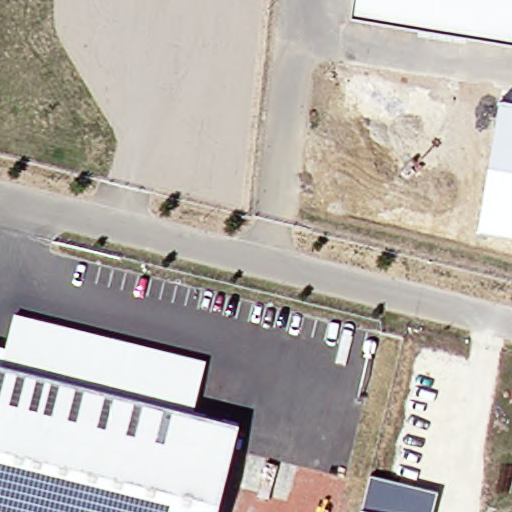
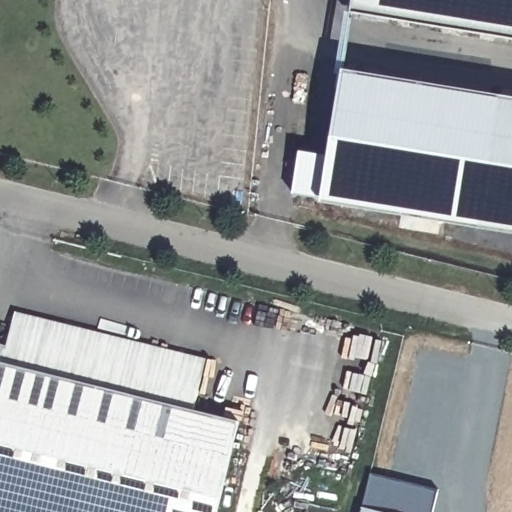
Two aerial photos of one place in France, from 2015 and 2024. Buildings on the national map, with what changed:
unchanged [(355,0),(512,0),(512,30),(354,4),(355,0)]
new [(512,237),(315,209),(337,69),(512,98),(512,237)]
unchanged [(0,512),(0,361),(2,361),(14,312),(205,358),(192,407),(238,418),(219,512),(0,512)]
unchanged [(432,512),(362,512),(363,507),(372,475),(438,491),(432,512)]

